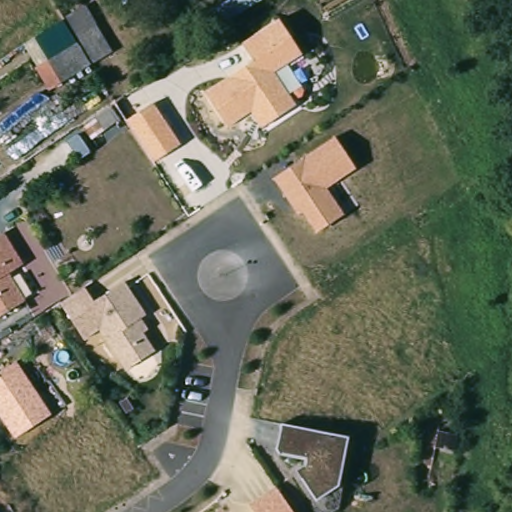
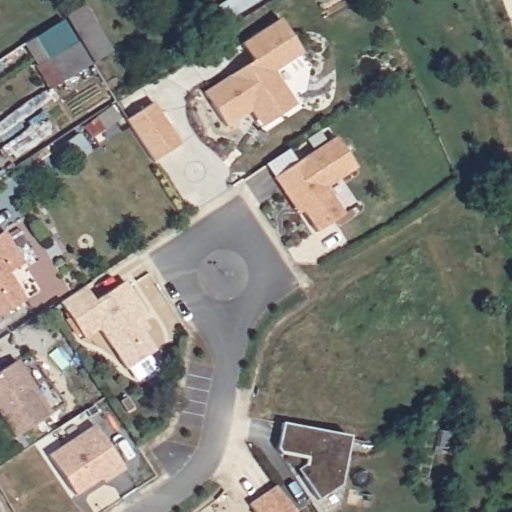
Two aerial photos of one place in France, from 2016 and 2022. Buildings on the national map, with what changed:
unchanged [(215,7),(227,0),(258,0),(222,21),(215,7)]
unchanged [(205,91),(252,61),(241,42),(278,19),(301,54),(275,71),(296,105),(260,127),(250,111),(226,127),(205,91)]
unchanged [(90,65),(62,82),(35,39),(63,21),(90,65)]
unchanged [(95,21),(112,51),(92,63),(75,34),(95,21)]
unchanged [(126,120),(154,102),(181,142),(154,161),(126,120)]
unchanged [(301,212),(297,215),(274,179),(335,136),(355,167),(327,188),(344,214),(316,232),(301,212)]
unchanged [(7,232),(27,266),(12,274),(27,302),(0,317),(0,237),(7,232)]
unchanged [(75,292),(83,287),(94,302),(124,282),(145,315),(135,322),(155,351),(126,370),(99,330),(84,340),(59,303),(75,292)]
unchanged [(54,413),(17,438),(0,411),(0,373),(20,360),(54,413)]
unchanged [(341,485),(317,500),(301,471),(310,467),(310,457),(278,452),(282,422),(349,435),(341,485)]
new [(94,426),(123,469),(109,478),(106,475),(75,496),(48,457),(94,426)]
unchanged [(275,485),(294,512),(255,512),(249,502),(275,485)]

